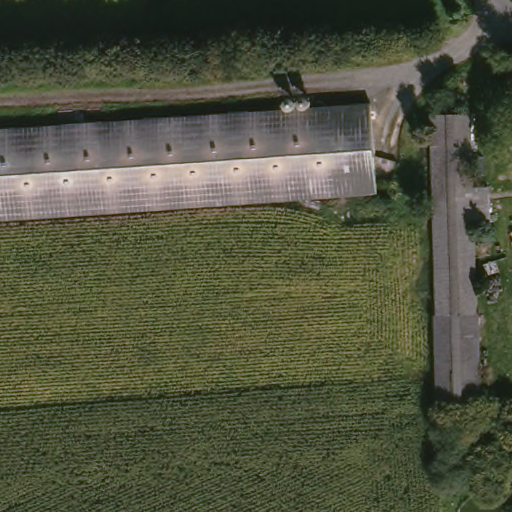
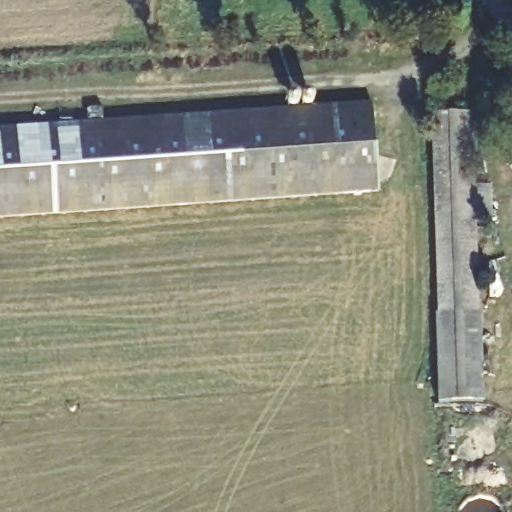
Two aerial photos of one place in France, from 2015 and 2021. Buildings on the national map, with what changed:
unchanged [(374,196),(0,221),(0,137),(368,114),(374,196)]
unchanged [(429,145),(471,144),(483,405),(441,408),(429,145)]

